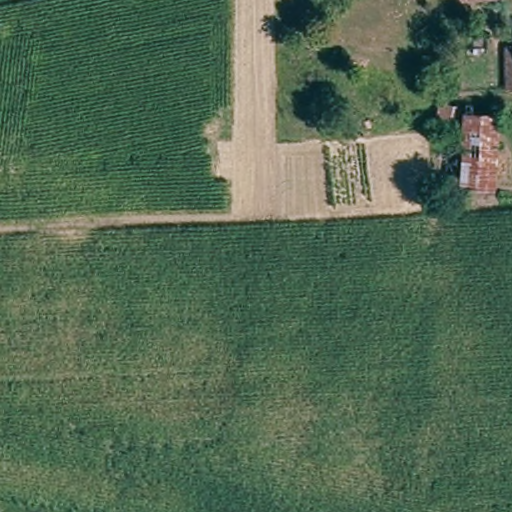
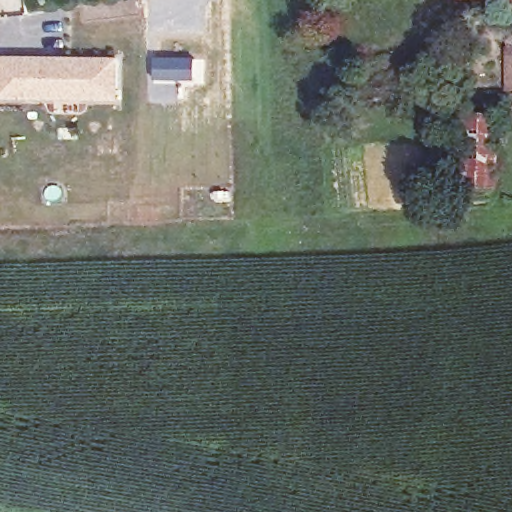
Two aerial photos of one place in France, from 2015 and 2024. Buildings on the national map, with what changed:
unchanged [(510,0),(512,0),(512,2),(510,3),(510,0)]
unchanged [(507,30),(512,29),(512,89),(507,90),(507,30)]
new [(0,100),(0,57),(118,58),(118,103),(0,100)]
unchanged [(463,113),(501,112),(495,187),(457,185),(463,113)]

